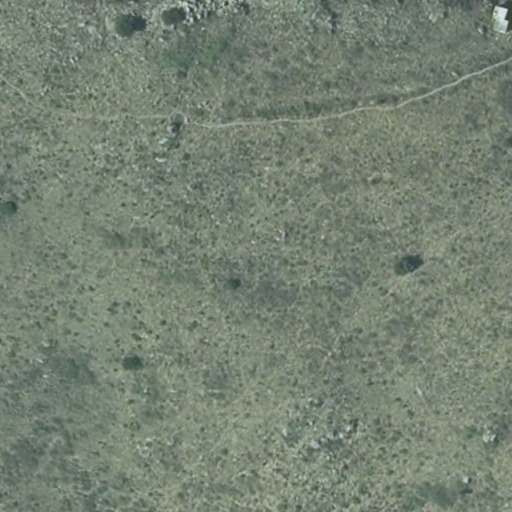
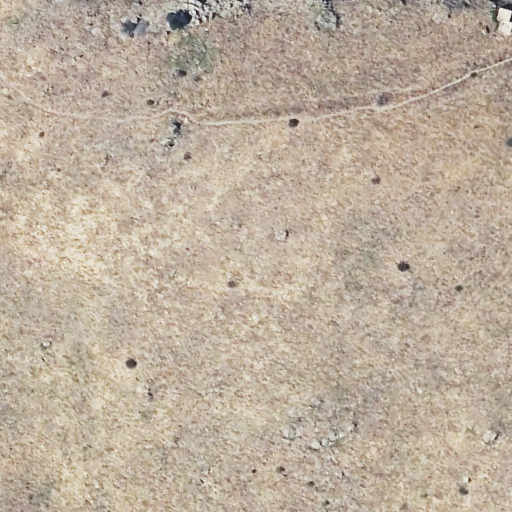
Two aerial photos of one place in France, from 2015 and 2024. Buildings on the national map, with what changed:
unchanged [(500,32),(504,20),(501,7),(512,10),(512,37),(500,32)]

